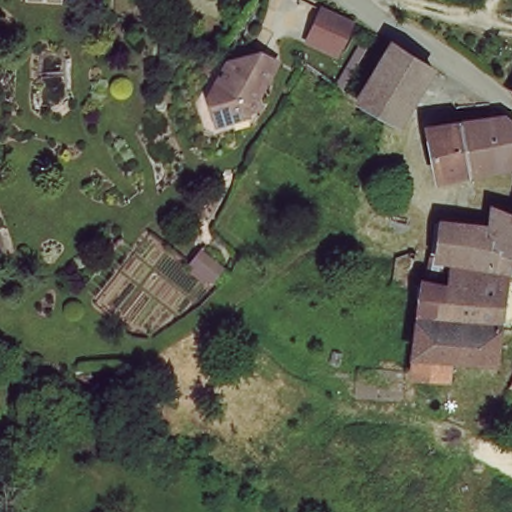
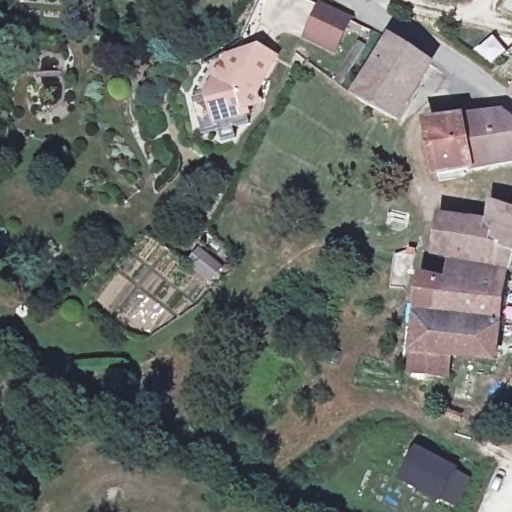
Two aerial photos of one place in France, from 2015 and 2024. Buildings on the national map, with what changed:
unchanged [(333,44),(304,27),(318,1),(347,17),(333,44)]
unchanged [(394,46),(426,58),(400,125),(358,106),(382,41),(394,46)]
unchanged [(273,60),(253,99),(254,106),(242,108),(240,117),(210,123),(200,96),(221,63),(226,66),(235,60),(245,57),(250,62),(256,52),(273,60)]
unchanged [(512,92),(508,90),(512,84),(512,92)]
unchanged [(508,112),(512,130),(512,208),(485,198),(493,166),(464,170),(457,122),(508,112)]
unchanged [(428,177),(419,126),(443,123),(457,122),(464,170),(428,177)]
unchanged [(499,261),(413,247),(418,221),(476,231),(485,198),(512,208),(512,241),(504,239),(499,261)]
unchanged [(468,364),(449,363),(407,362),(405,315),(406,293),(437,294),(437,279),(494,283),(493,336),(492,365),(468,364)]
unchanged [(449,363),(449,392),(408,389),(407,362),(449,363)]
new [(402,481),(417,453),(468,479),(454,507),(402,481)]

